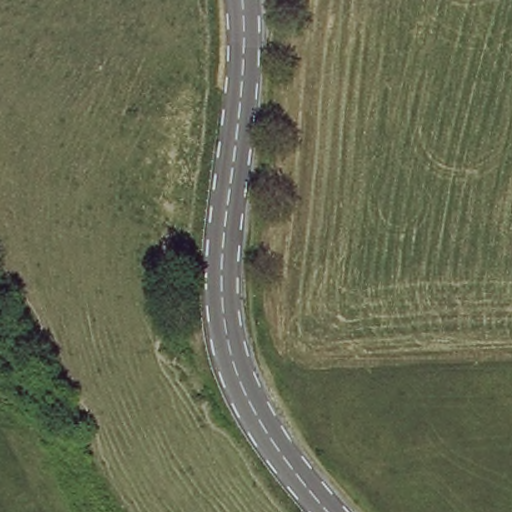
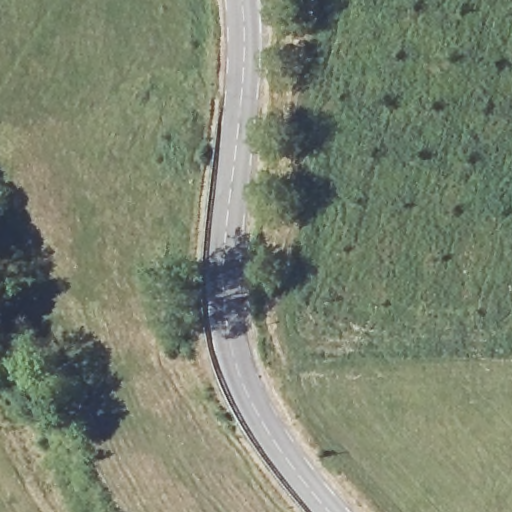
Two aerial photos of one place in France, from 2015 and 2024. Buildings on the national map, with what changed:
[]

